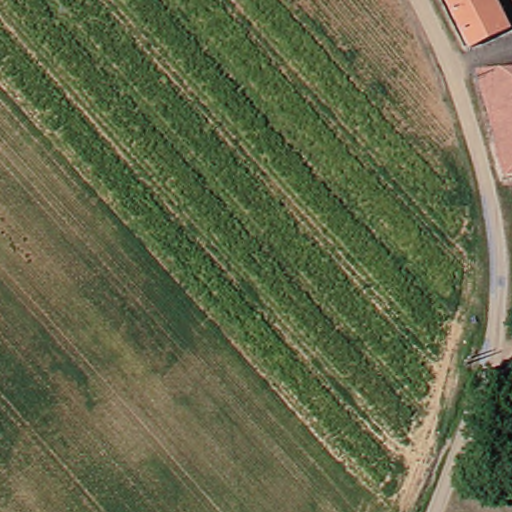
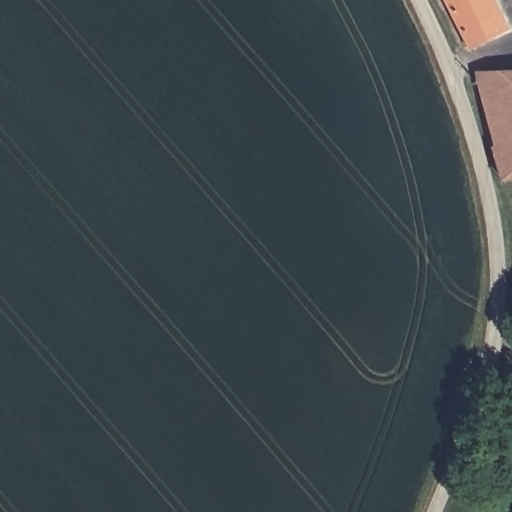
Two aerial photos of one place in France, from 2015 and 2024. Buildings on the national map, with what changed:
unchanged [(488,0),(503,35),(462,53),(439,0),(488,0)]
unchanged [(473,78),(479,74),(512,74),(512,176),(499,177),(473,78)]

